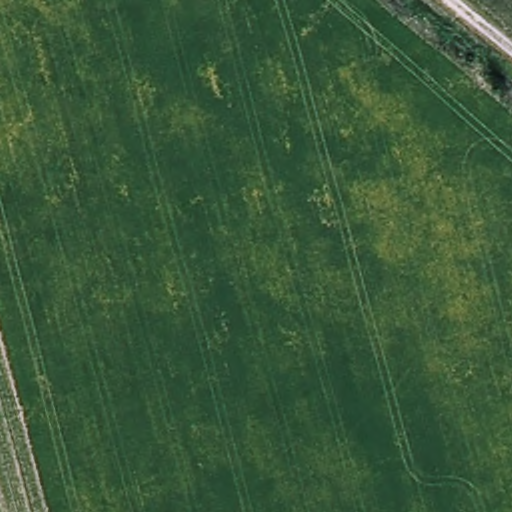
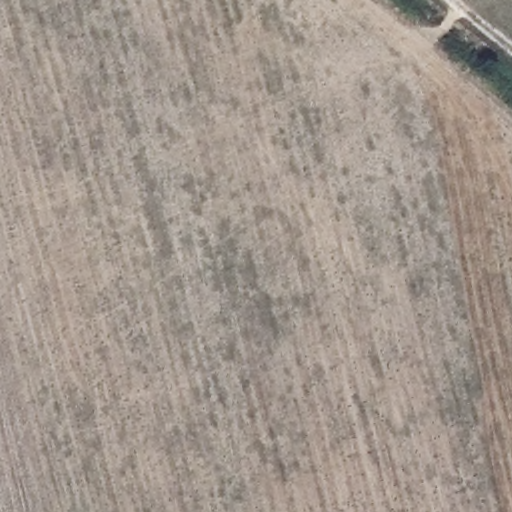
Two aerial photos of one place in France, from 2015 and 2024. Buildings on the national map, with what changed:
[]

